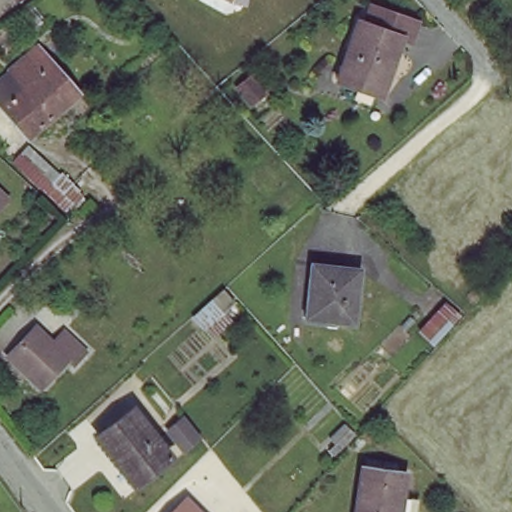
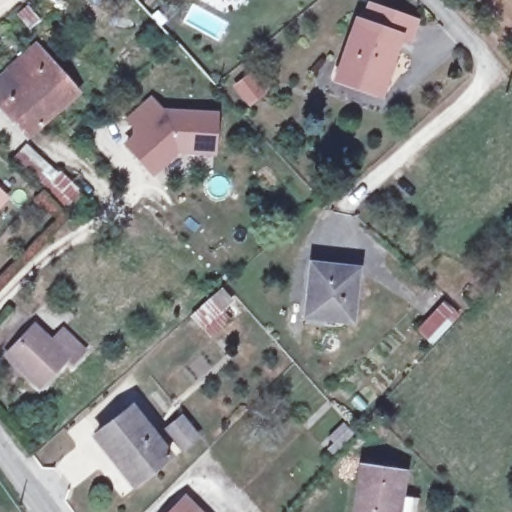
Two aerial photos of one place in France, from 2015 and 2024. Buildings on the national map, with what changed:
unchanged [(343,72),(338,71),(341,59),(347,61),(357,26),(364,27),(369,7),(413,20),(407,41),(399,39),(383,94),(340,82),(343,72)]
unchanged [(56,62),(66,76),(78,91),(24,133),(0,103),(0,73),(9,66),(40,42),(56,62)]
unchanged [(249,83),(265,99),(252,111),(236,94),(249,83)]
new [(139,135),(128,122),(151,102),(162,115),(164,113),(216,117),(213,156),(177,154),(152,175),(126,146),(139,135)]
unchanged [(28,142),(73,184),(55,202),(9,161),(28,142)]
unchanged [(5,195),(0,200),(0,191),(5,195)]
unchanged [(312,262),(360,268),(355,322),(306,316),(312,262)]
unchanged [(214,304),(224,315),(204,334),(193,323),(214,304)]
unchanged [(446,306),(457,317),(433,343),(422,331),(446,306)]
unchanged [(8,355),(38,326),(54,341),(63,332),(85,353),(75,364),(70,359),(40,387),(8,355)]
unchanged [(132,412),(169,457),(135,486),(97,441),(132,412)]
unchanged [(202,436),(184,453),(165,434),(185,417),(202,436)]
unchanged [(406,492),(403,512),(355,512),(360,484),(406,492)]
unchanged [(194,512),(165,512),(179,497),(194,512)]

